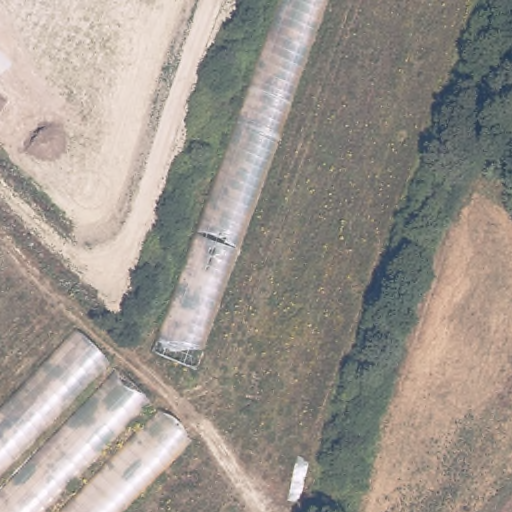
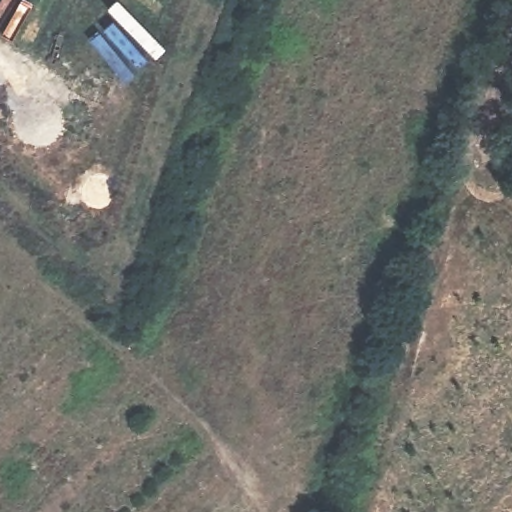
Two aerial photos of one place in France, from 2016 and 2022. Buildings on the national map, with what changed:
demolished [(78,327),(139,381),(276,0),(328,0),(179,427),(192,442),(125,512),(0,512),(0,408),(78,327)]

